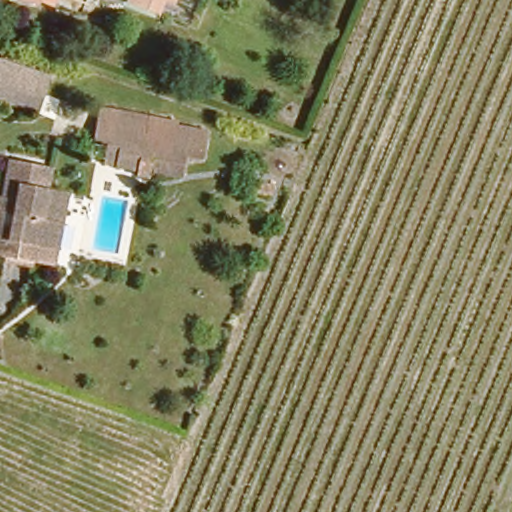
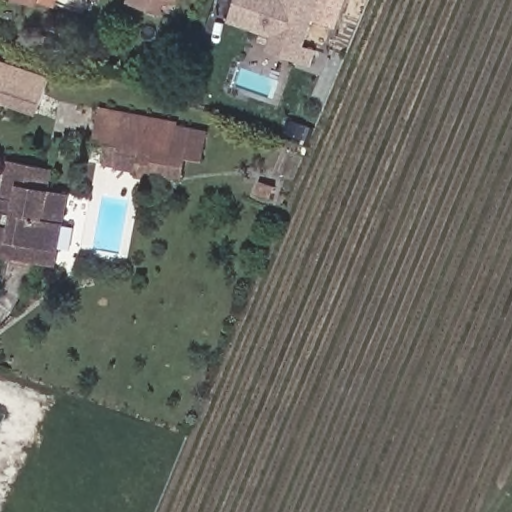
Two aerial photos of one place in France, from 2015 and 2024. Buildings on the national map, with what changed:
unchanged [(36,0),(41,0),(40,1),(36,0)]
new [(237,0),(318,0),(302,46),(316,51),(311,65),(270,50),(275,36),(230,21),(237,0)]
unchanged [(47,77),(31,117),(0,106),(0,61),(47,77)]
unchanged [(89,158),(95,104),(206,125),(201,155),(188,155),(180,177),(89,158)]
unchanged [(3,253),(0,252),(0,193),(1,193),(9,155),(39,161),(51,163),(47,184),(66,188),(63,203),(55,247),(52,263),(33,259),(3,253)]

